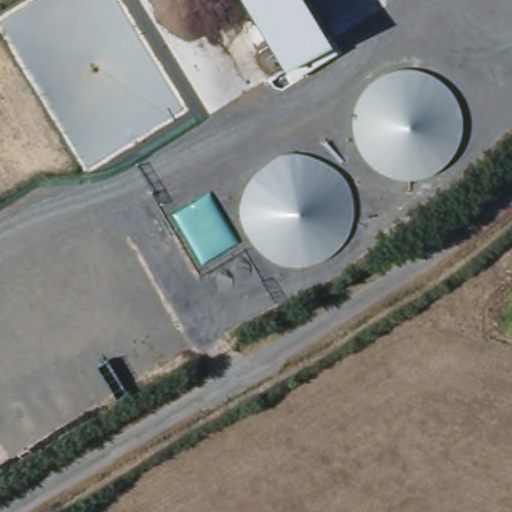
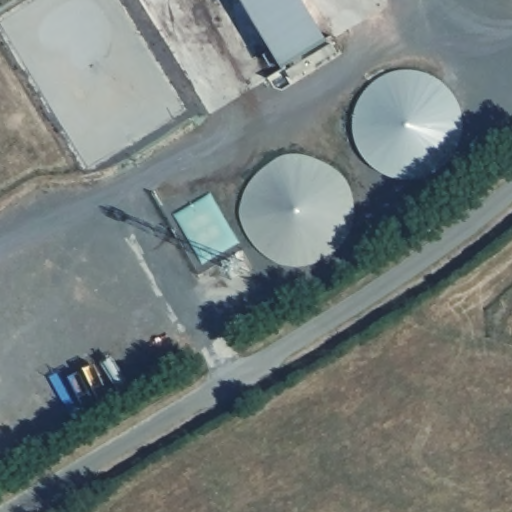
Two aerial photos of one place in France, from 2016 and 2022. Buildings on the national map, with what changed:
unchanged [(335,54),(290,79),(284,66),(244,0),(303,0),(328,41),(335,54)]

